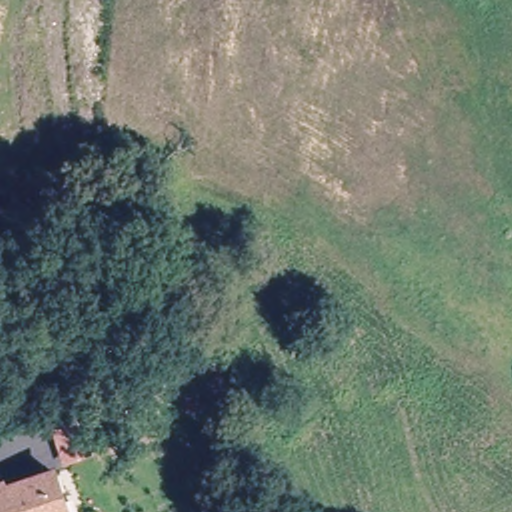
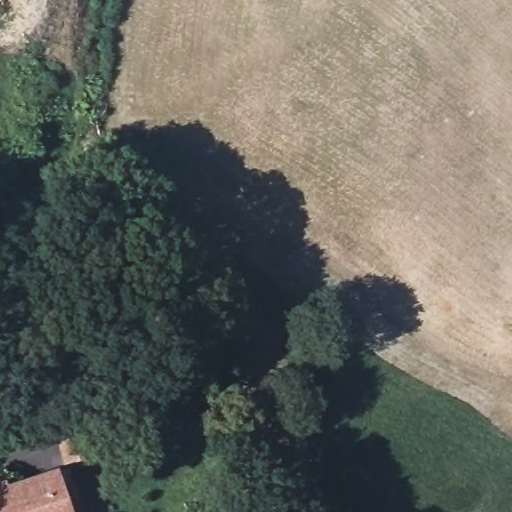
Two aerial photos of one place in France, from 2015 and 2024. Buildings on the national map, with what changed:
unchanged [(0,492),(53,475),(65,512),(0,512),(0,492)]

